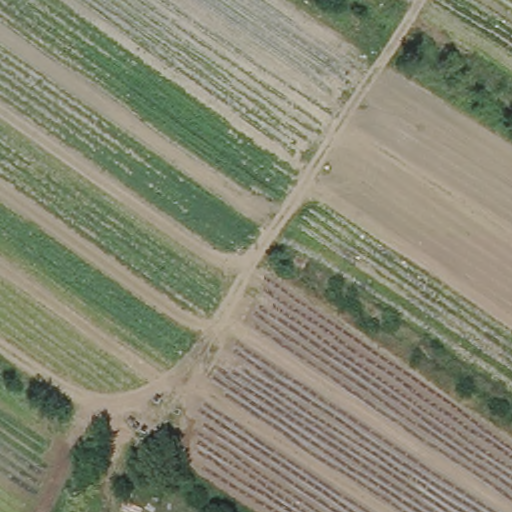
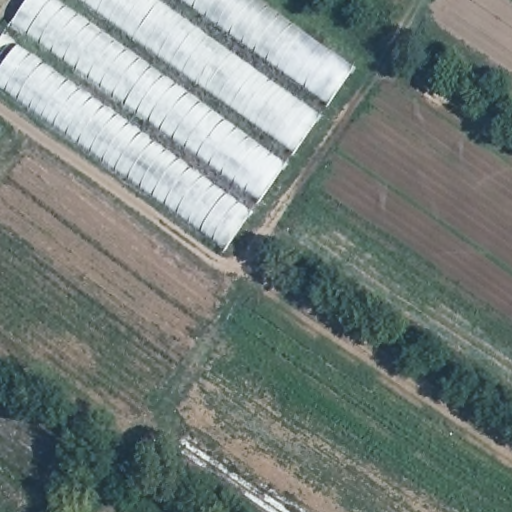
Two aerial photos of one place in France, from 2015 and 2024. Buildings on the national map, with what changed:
new [(352,72),(221,252),(0,94),(0,46),(33,0),(251,0),(352,72)]

